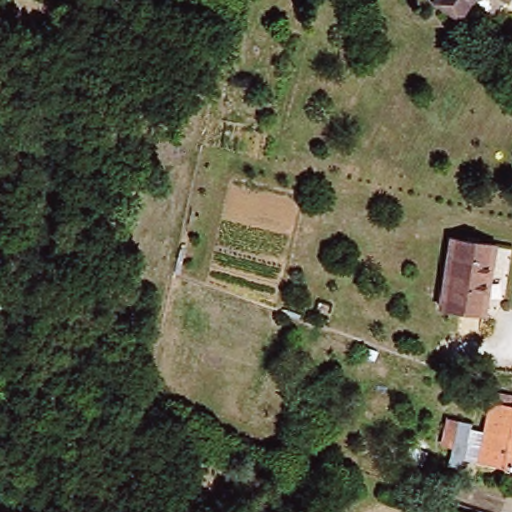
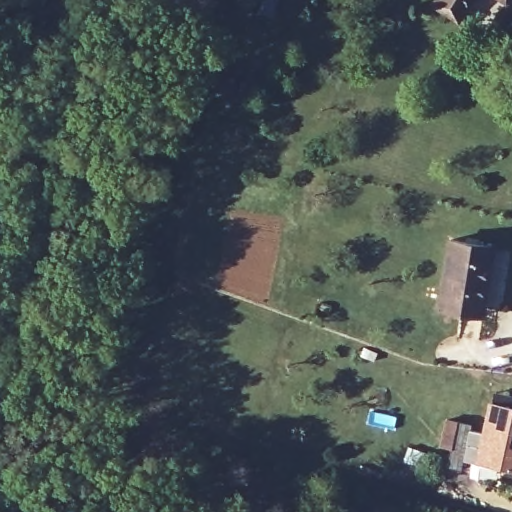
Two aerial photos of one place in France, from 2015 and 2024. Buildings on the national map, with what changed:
unchanged [(431,0),(472,0),(460,19),(431,0)]
unchanged [(508,0),(506,2),(502,0),(508,0)]
unchanged [(482,313),(438,306),(450,240),(494,247),(482,313)]
unchanged [(481,453),(465,450),(460,470),(447,467),(451,448),(438,446),(443,423),(468,430),(467,435),(484,438),(490,407),(495,408),(497,399),(512,402),(512,472),(478,465),(481,453)]

